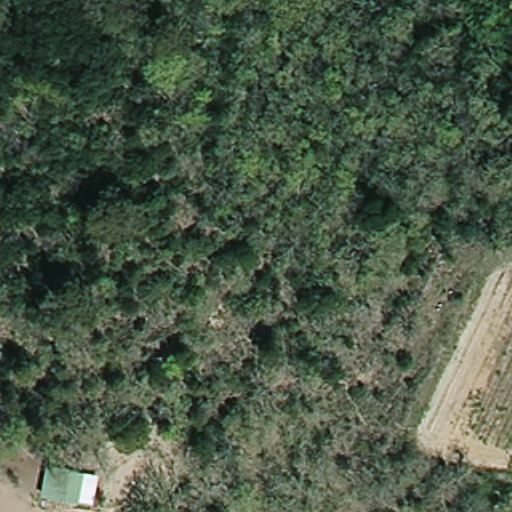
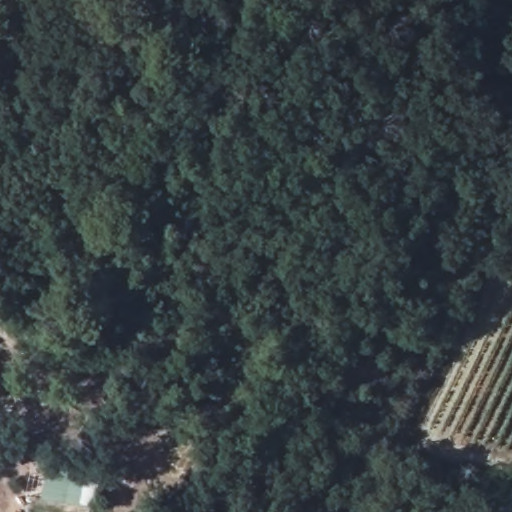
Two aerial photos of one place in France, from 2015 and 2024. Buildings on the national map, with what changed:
unchanged [(78,504),(42,498),(46,469),(99,478),(94,506),(78,504)]

